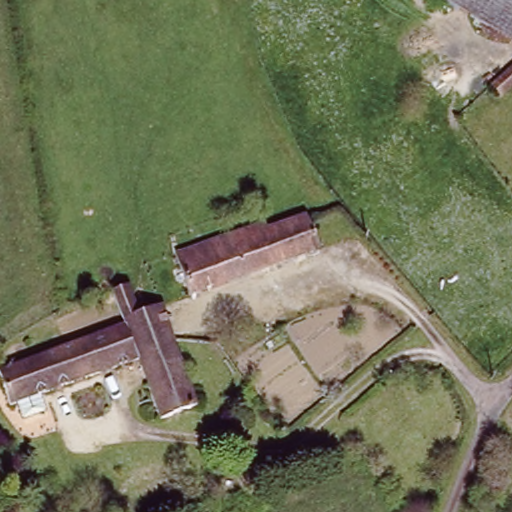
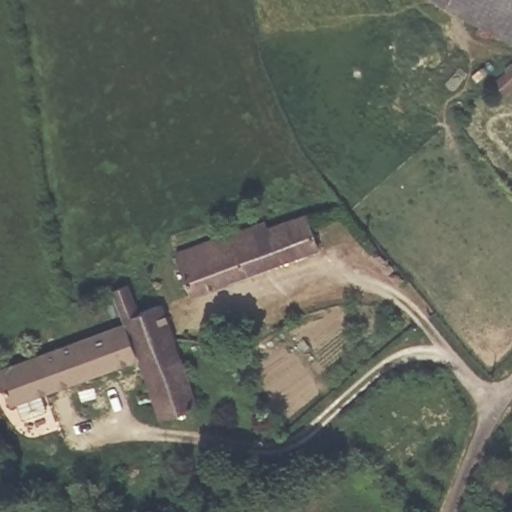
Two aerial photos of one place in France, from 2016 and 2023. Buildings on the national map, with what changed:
unchanged [(426,0),(512,0),(512,42),(426,0)]
unchanged [(497,103),(490,95),(512,74),(512,89),(497,103)]
unchanged [(264,231),(266,239),(305,226),(316,259),(190,302),(177,262),(264,231)]
unchanged [(161,308),(173,343),(133,355),(125,331),(112,294),(128,289),(138,315),(161,308)]
unchanged [(22,425),(17,409),(10,411),(0,377),(0,375),(125,331),(133,355),(173,343),(197,409),(158,422),(137,367),(39,402),(44,417),(22,425)]

